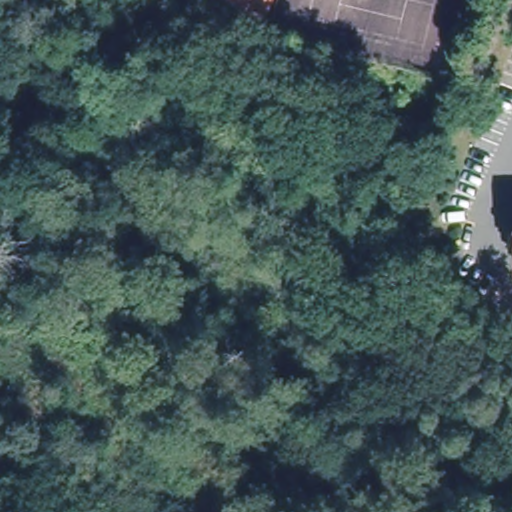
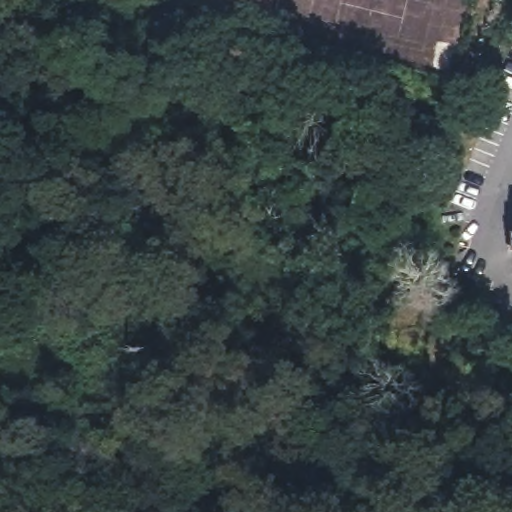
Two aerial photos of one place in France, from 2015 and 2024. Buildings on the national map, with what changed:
unchanged [(262,14),(240,0),(266,0),(262,14)]
unchanged [(509,229),(512,229),(512,247),(509,247),(509,229)]

